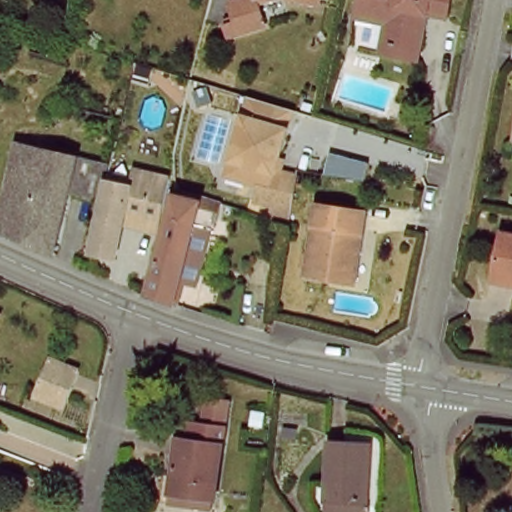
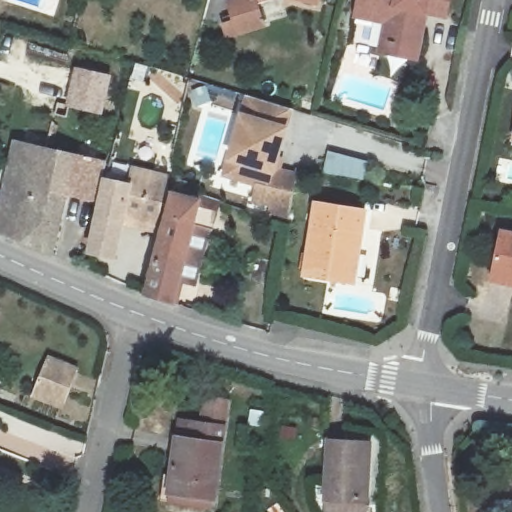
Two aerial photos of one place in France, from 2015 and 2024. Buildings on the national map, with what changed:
unchanged [(266,25),(230,37),(226,25),(237,21),(230,4),(241,0),(263,0),(257,2),(266,25)]
unchanged [(309,0),(321,0),(321,2),(309,0)]
unchanged [(452,0),(449,17),(429,12),(420,56),(395,46),(399,29),(359,18),(361,0),(452,0)]
new [(75,66),(112,75),(103,115),(65,107),(75,66)]
unchanged [(302,114),(294,132),(283,176),(302,181),(292,227),(273,224),(273,213),(257,209),(262,192),(231,184),(236,166),(246,119),(255,102),(302,114)]
unchanged [(60,192),(41,251),(1,232),(0,232),(0,168),(6,140),(96,161),(88,196),(60,192)]
unchanged [(74,219),(87,221),(102,162),(163,176),(160,188),(150,230),(116,219),(108,252),(81,244),(82,239),(70,236),(74,219)]
unchanged [(181,286),(176,306),(141,296),(171,191),(216,203),(209,232),(194,290),(181,286)]
unchanged [(319,207),(368,217),(352,287),(301,277),(319,207)]
unchanged [(495,280),(497,267),(505,229),(512,230),(512,284),(495,280)]
unchanged [(51,358),(82,371),(67,408),(35,394),(51,358)]
unchanged [(175,418),(198,423),(204,391),(233,396),(229,428),(225,432),(212,508),(163,500),(175,418)]
unchanged [(324,447),(377,458),(368,512),(318,512),(324,447)]

